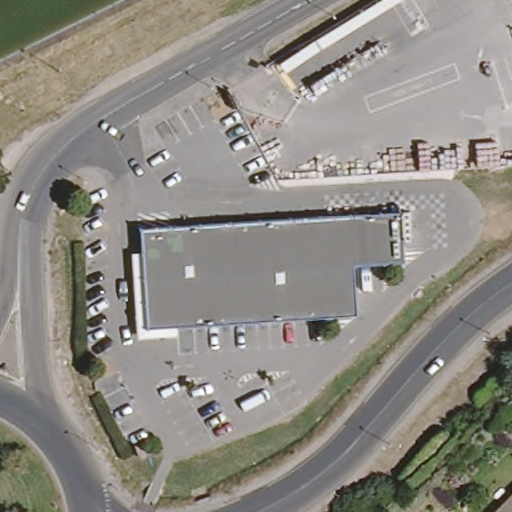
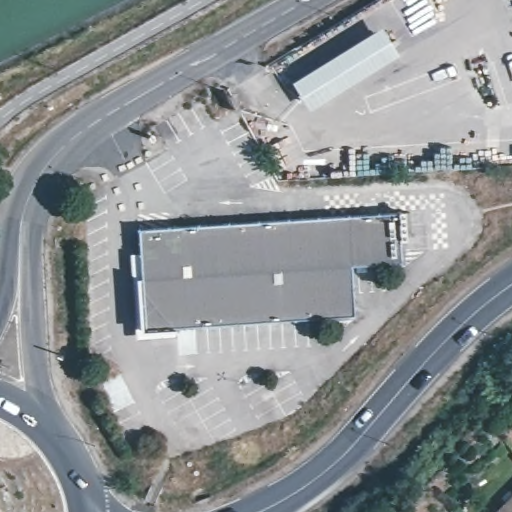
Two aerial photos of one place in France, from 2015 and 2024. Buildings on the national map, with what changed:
new [(401,52),(310,111),(294,82),(382,25),(401,52)]
unchanged [(354,266),(357,315),(145,329),(138,227),(400,210),(403,262),(354,266)]
unchanged [(512,498),(512,512),(498,512),(503,507),(512,498)]

